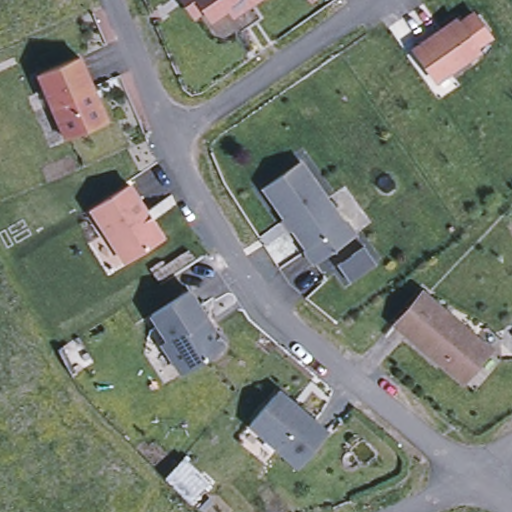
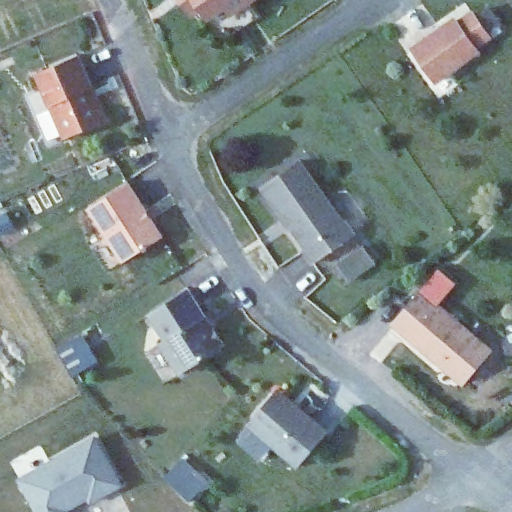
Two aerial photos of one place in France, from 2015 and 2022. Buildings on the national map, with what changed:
unchanged [(183,0),(222,0),(205,11),(198,1),(194,4),(192,6),(188,8),(183,0)]
unchanged [(222,0),(239,0),(228,8),(222,0)]
unchanged [(454,23),(469,13),(484,36),(470,46),(473,50),(432,80),(410,49),(451,19),(454,23)]
unchanged [(78,55),(92,86),(96,96),(106,119),(64,137),(50,103),(37,73),(78,55)]
unchanged [(284,217),(263,187),(299,161),(343,223),(345,221),(354,234),(313,263),(304,250),(306,249),(291,228),(289,229),(282,219),(284,217)]
unchanged [(128,184),(146,210),(143,212),(149,221),(151,219),(162,236),(123,260),(105,231),(90,207),(128,184)]
unchanged [(363,247),(374,262),(347,281),(336,265),(363,247)]
unchanged [(206,315),(213,328),(221,340),(220,347),(181,372),(161,342),(167,339),(151,313),(188,289),(206,315)]
unchanged [(421,291),(491,349),(464,382),(394,324),(421,291)]
new [(79,335),(93,360),(71,373),(56,349),(79,335)]
unchanged [(278,389),(298,406),(328,431),(299,466),(248,423),(274,392),(278,389)]
new [(95,437),(121,484),(91,500),(88,496),(65,509),(67,512),(38,512),(19,478),(95,437)]
new [(181,458),(208,481),(189,502),(164,477),(181,458)]

